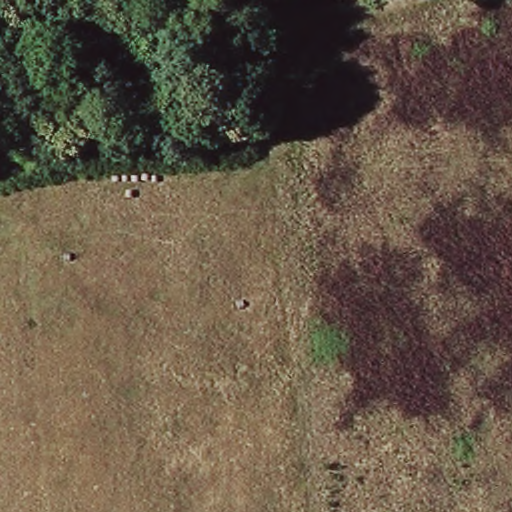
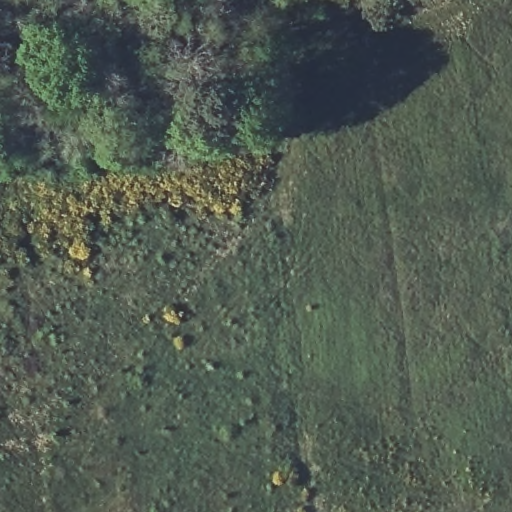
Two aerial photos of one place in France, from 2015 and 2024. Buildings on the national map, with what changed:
unchanged [(27,7),(9,5),(9,0),(28,0),(27,7)]

